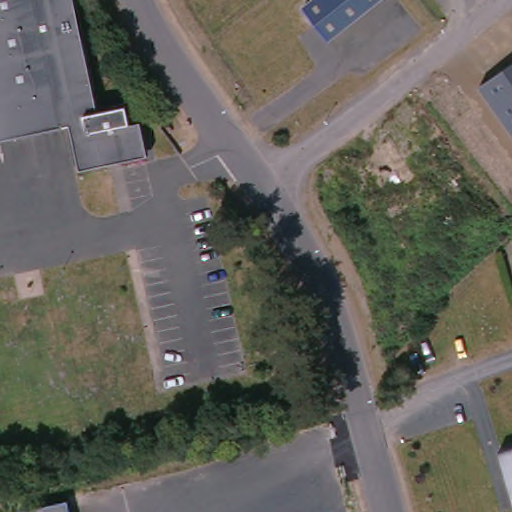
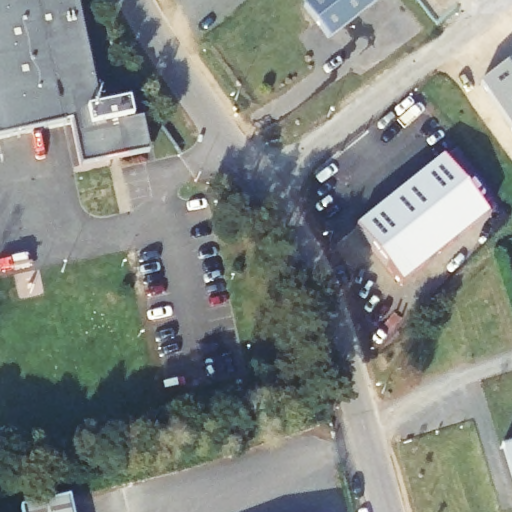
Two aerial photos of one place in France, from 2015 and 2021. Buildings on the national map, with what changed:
unchanged [(131,98),(133,118),(143,116),(151,158),(123,161),(116,134),(67,143),(65,136),(51,140),(0,146),(0,0),(77,0),(101,103),(131,98)]
unchanged [(384,0),(331,43),(306,11),(321,0),(384,0)]
unchanged [(479,88),(512,64),(512,135),(479,88)]
new [(443,157),(488,213),(401,284),(356,228),(443,157)]
unchanged [(512,442),(512,488),(498,446),(512,442)]
unchanged [(69,501),(72,512),(21,512),(21,511),(69,501)]

